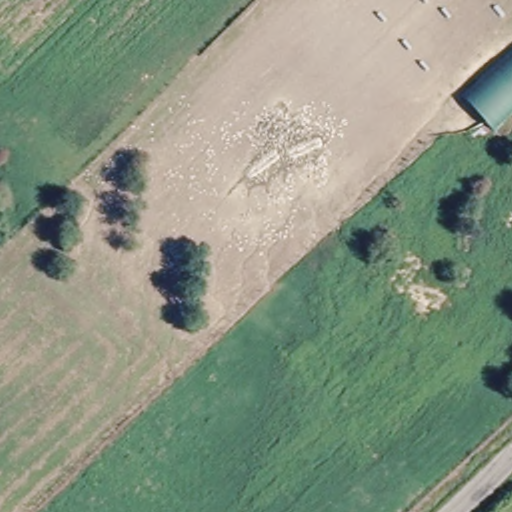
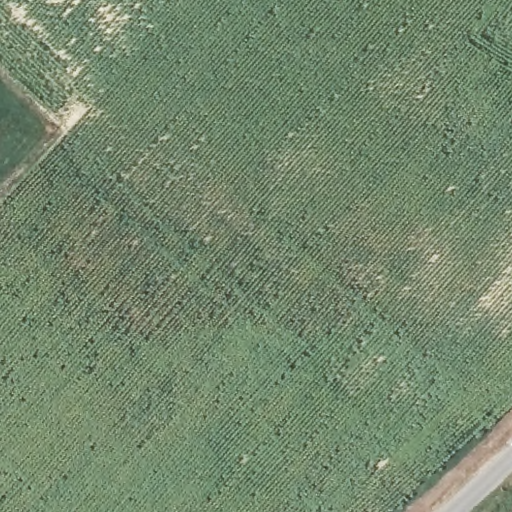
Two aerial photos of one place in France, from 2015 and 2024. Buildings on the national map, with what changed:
demolished [(512,111),(493,127),(462,95),(512,54),(512,111)]

